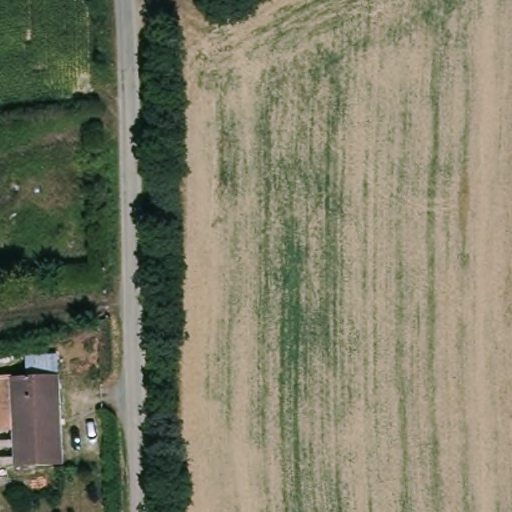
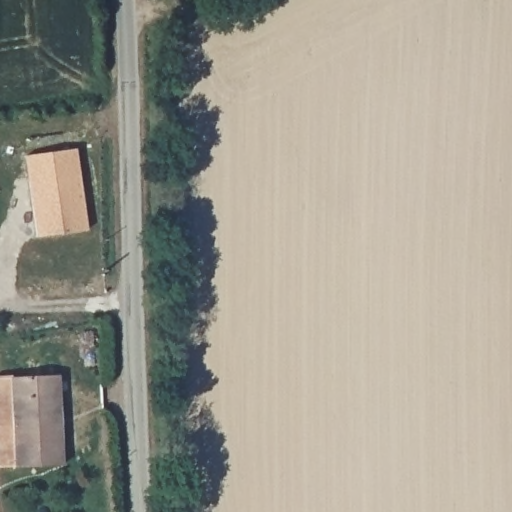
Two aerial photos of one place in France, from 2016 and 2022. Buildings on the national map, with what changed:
new [(87,230),(36,236),(25,156),(76,149),(87,230)]
unchanged [(52,373),(54,462),(9,463),(6,376),(52,373)]

